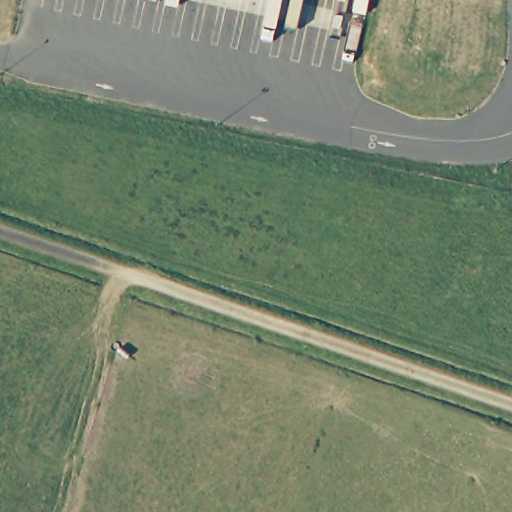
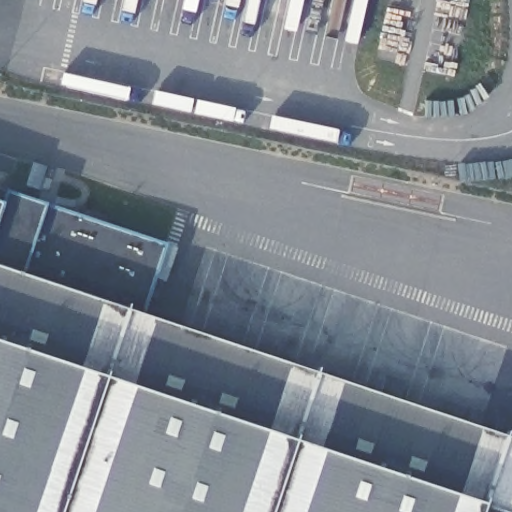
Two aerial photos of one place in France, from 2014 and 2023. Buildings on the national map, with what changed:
new [(505,512),(485,505),(482,512),(0,512),(0,203),(1,203),(5,190),(45,204),(164,245),(176,249),(153,316),(512,439),(512,512),(505,512)]

